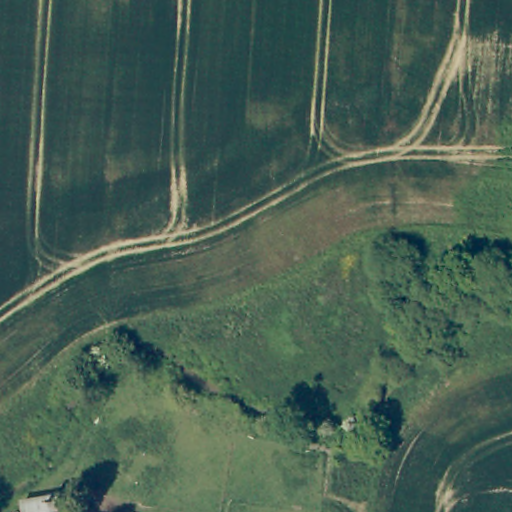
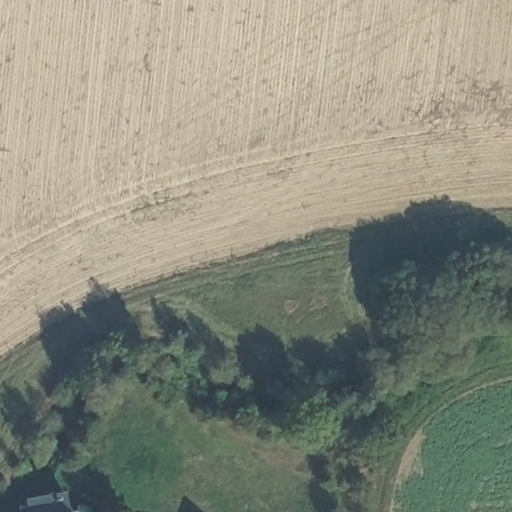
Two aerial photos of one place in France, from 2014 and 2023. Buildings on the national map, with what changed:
unchanged [(62,495),(64,512),(26,512),(25,501),(62,495)]

